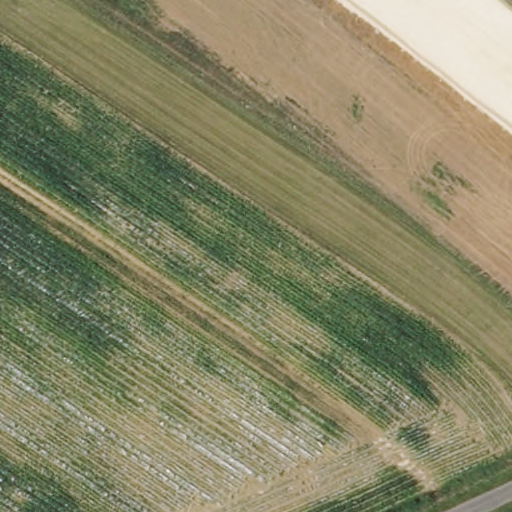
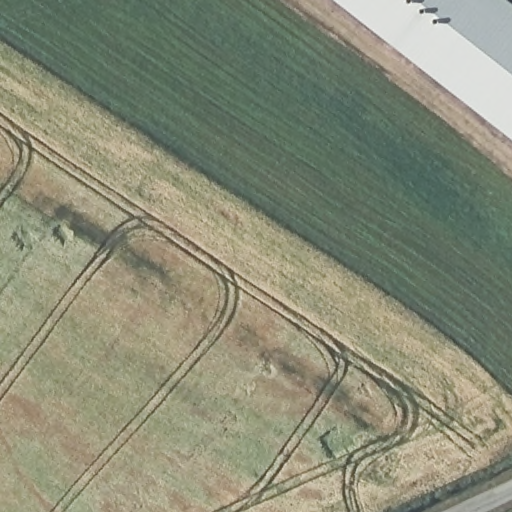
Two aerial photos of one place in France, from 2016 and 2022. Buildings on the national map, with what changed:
new [(335,0),(509,0),(512,2),(512,138),(335,0)]

